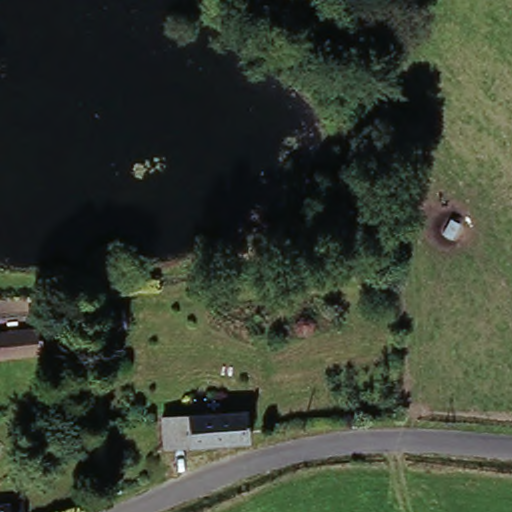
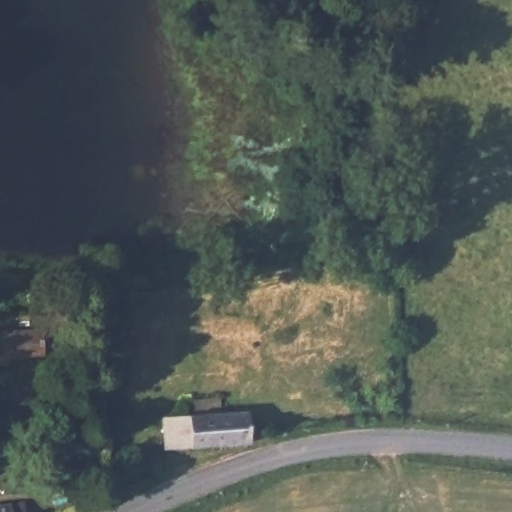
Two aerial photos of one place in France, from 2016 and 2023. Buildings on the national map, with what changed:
unchanged [(97,321),(97,316),(120,314),(121,329),(102,332),(100,329),(91,332),(90,322),(97,321)]
unchanged [(35,358),(0,362),(0,340),(34,336),(35,358)]
unchanged [(169,451),(165,417),(246,412),(249,444),(169,451)]
unchanged [(25,512),(0,512),(0,499),(25,496),(25,512)]

